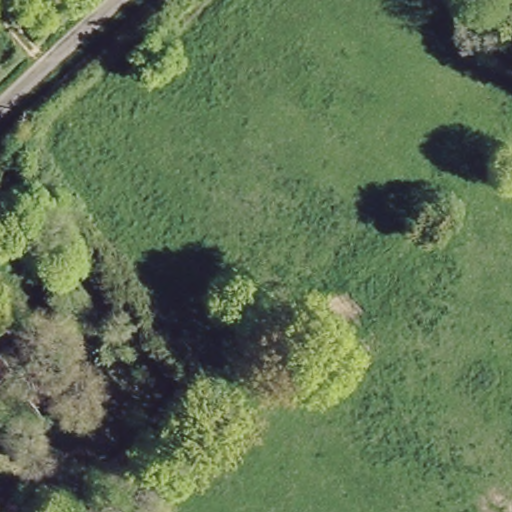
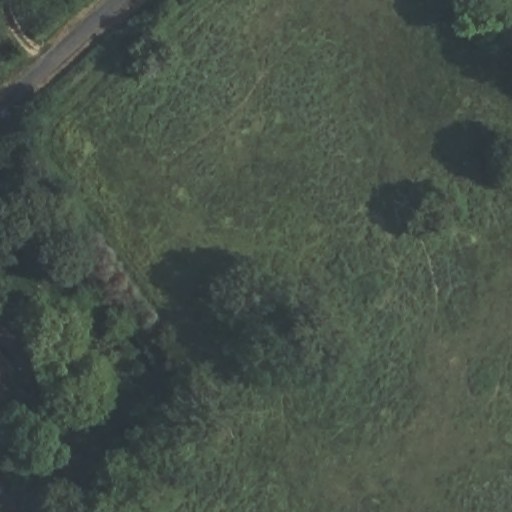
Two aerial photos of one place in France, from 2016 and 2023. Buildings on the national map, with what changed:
unchanged [(4,364),(0,368),(0,360),(4,364)]

